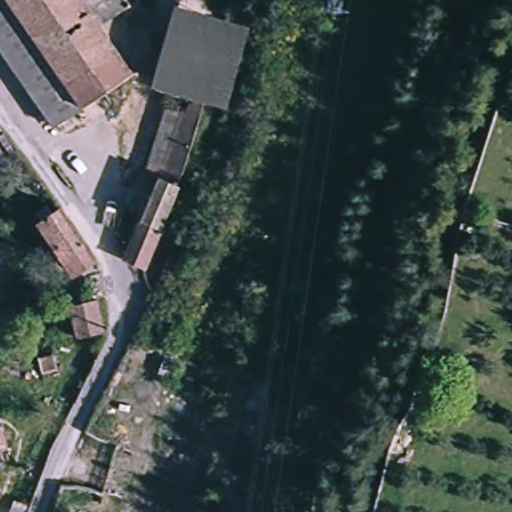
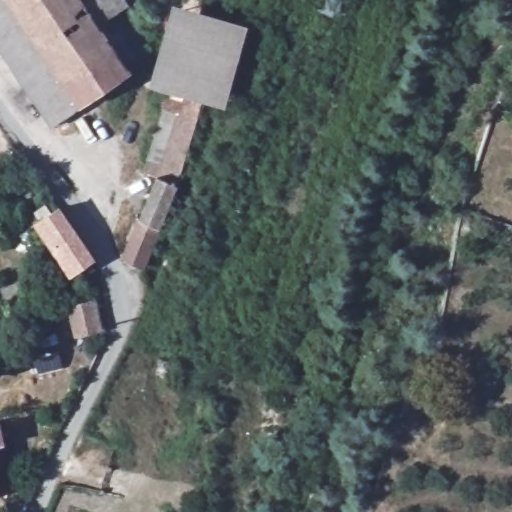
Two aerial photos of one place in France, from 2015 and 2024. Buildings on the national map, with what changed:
unchanged [(133,73),(55,126),(0,49),(0,0),(128,0),(132,6),(102,26),(133,73)]
unchanged [(121,260),(154,185),(144,172),(163,105),(152,90),(172,7),(246,25),(226,105),(201,104),(175,190),(157,231),(140,273),(121,260)]
unchanged [(37,227),(54,216),(87,267),(68,278),(37,227)]
unchanged [(99,334),(70,337),(67,310),(94,301),(99,334)]
unchanged [(70,380),(55,383),(52,370),(67,366),(70,380)]
unchanged [(2,426),(5,435),(15,435),(17,445),(5,447),(5,450),(0,451),(0,426),(2,426)]

